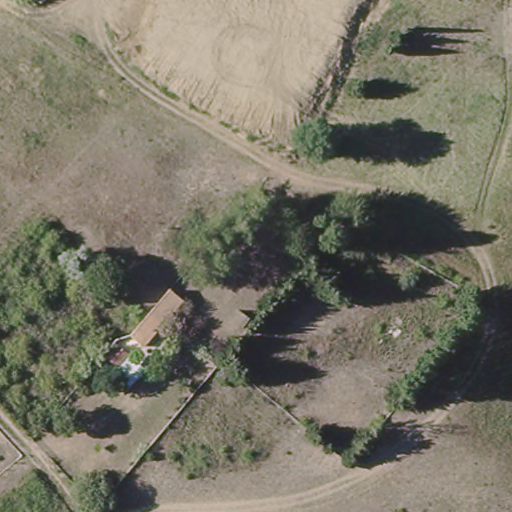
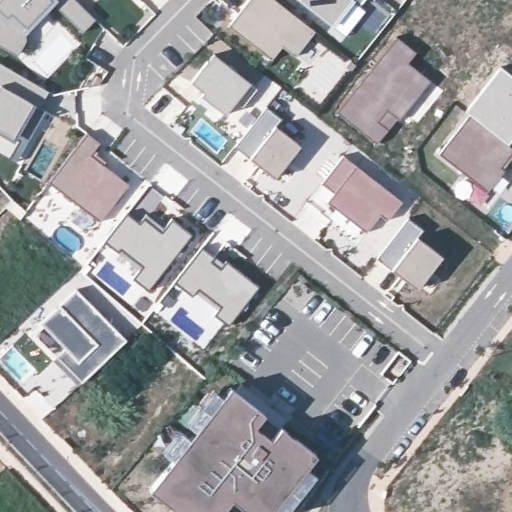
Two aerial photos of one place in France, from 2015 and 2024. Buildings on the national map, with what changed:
new [(18,56),(0,46),(0,0),(74,0),(95,19),(82,32),(54,4),(26,33),(26,41),(18,56)]
new [(293,57),(281,48),(272,59),(231,25),(251,0),(272,0),(313,32),(293,57)]
new [(352,1),(332,26),(299,0),(353,0),(352,1)]
new [(396,37),(416,52),(409,62),(431,81),(378,142),(338,111),(396,37)]
new [(204,92),(191,82),(207,62),(208,62),(213,56),(258,88),(243,107),(236,101),(226,114),(215,106),(211,110),(198,100),(202,95),(204,92)]
new [(39,107),(51,114),(47,121),(42,119),(17,161),(0,151),(0,64),(48,91),(39,107)]
new [(470,117),(466,112),(499,66),(512,76),(512,140),(508,146),(470,117)]
new [(266,108),(281,120),(275,128),(299,146),(274,178),(235,147),(266,108)]
new [(499,169),(503,172),(487,191),(440,154),(470,117),(512,150),(512,153),(499,169)]
new [(99,223),(49,183),(88,133),(100,143),(91,155),(129,186),(99,223)]
new [(328,202),(335,193),(321,183),(343,156),(402,202),(387,220),(380,216),(367,232),(328,202)]
new [(133,279),(142,267),(121,250),(119,251),(106,241),(126,213),(139,223),(145,217),(162,232),(173,219),(191,235),(149,291),(133,279)]
demolished [(354,235),(341,225),(348,217),(361,227),(354,235)]
new [(416,290),(392,271),(394,269),(379,259),(410,220),(423,231),(417,240),(441,258),(416,290)]
new [(202,246),(223,262),(226,259),(259,286),(228,324),(214,313),(218,308),(196,291),(192,296),(174,281),(202,246)]
new [(53,360),(65,348),(41,322),(76,289),(126,340),(79,385),(53,360)]
demolished [(129,340),(129,339),(149,316),(157,308),(169,293),(182,304),(163,327),(143,351),(129,340)]
demolished [(236,328),(227,322),(237,308),(246,315),(236,328)]
demolished [(117,366),(106,356),(117,344),(128,353),(117,366)]
new [(273,512),(272,511),(271,512),(246,512),(232,501),(223,512),(174,512),(176,510),(152,490),(175,461),(166,453),(181,432),(190,439),(198,430),(188,423),(213,391),(223,398),(231,387),(237,392),(243,386),(287,420),(281,428),(316,456),(307,467),(318,476),(289,512),(273,512)]

